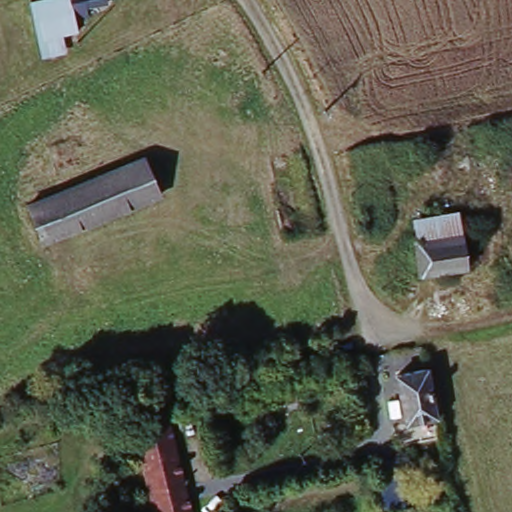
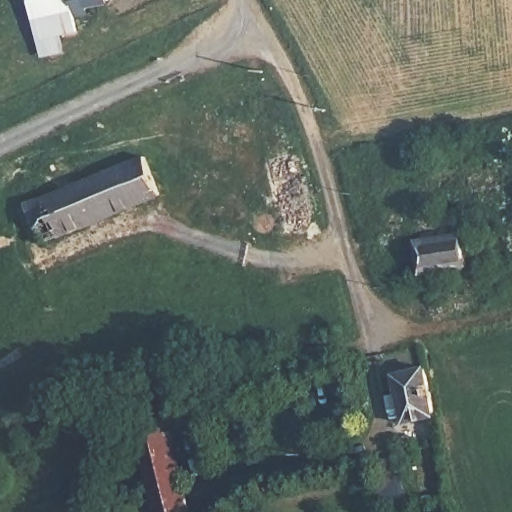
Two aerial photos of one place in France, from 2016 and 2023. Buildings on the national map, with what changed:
unchanged [(112,0),(113,14),(81,21),(84,41),(66,45),(67,60),(44,65),(29,5),(53,0),(112,0)]
unchanged [(276,165),(302,161),(310,204),(280,208),(276,165)]
unchanged [(150,164),(166,201),(72,240),(56,202),(150,164)]
unchanged [(56,202),(72,240),(46,250),(31,215),(56,202)]
unchanged [(310,204),(316,234),(283,239),(278,208),(280,208),(310,204)]
unchanged [(465,242),(470,273),(426,281),(421,248),(465,242)]
unchanged [(441,422),(411,428),(401,383),(431,376),(441,422)]
unchanged [(146,453),(140,423),(172,416),(179,445),(194,512),(159,512),(146,453)]

